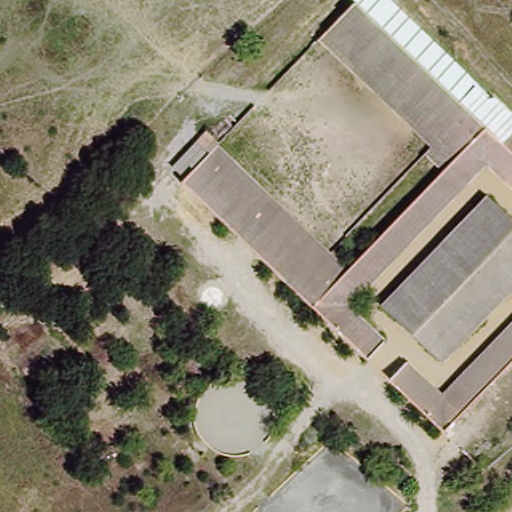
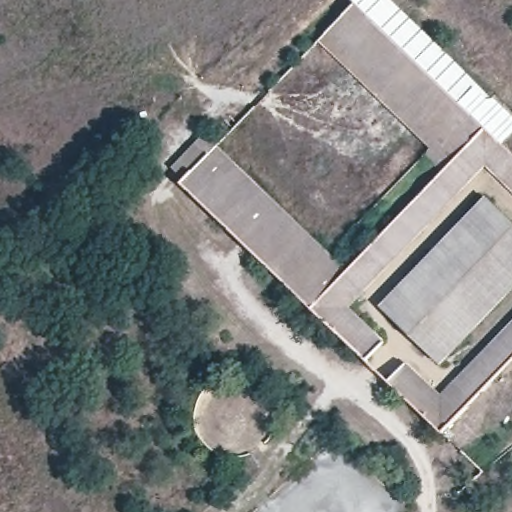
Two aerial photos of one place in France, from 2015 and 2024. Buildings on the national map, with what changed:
unchanged [(347,274),(439,175),(424,159),(432,150),(318,44),(358,4),(488,134),(488,169),(351,309),(329,332),(178,187),(219,147),(347,274)]
unchanged [(512,157),(512,194),(488,169),(488,134),(512,157)]
unchanged [(512,221),(512,294),(440,369),(381,308),(482,189),(512,221)]
unchanged [(384,344),(365,363),(329,332),(351,309),(384,344)]
unchanged [(390,381),(406,364),(442,397),(512,325),(512,364),(443,434),(390,381)]

